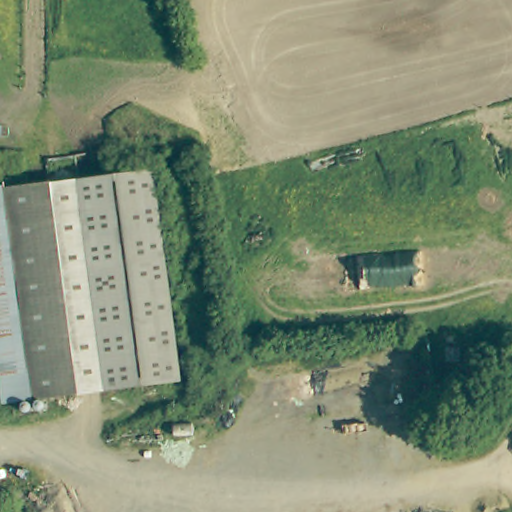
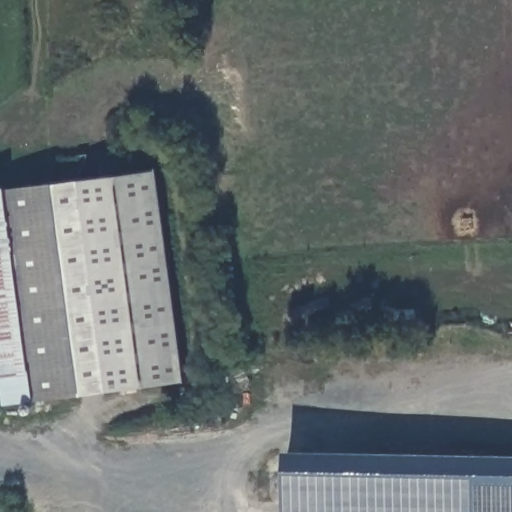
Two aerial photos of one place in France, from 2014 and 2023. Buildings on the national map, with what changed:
unchanged [(156,178),(167,389),(1,396),(0,367),(0,189),(156,178)]
new [(512,460),(512,512),(284,512),(285,457),(512,460)]

